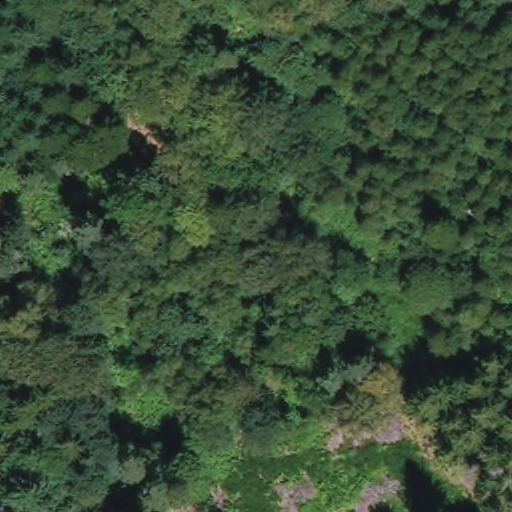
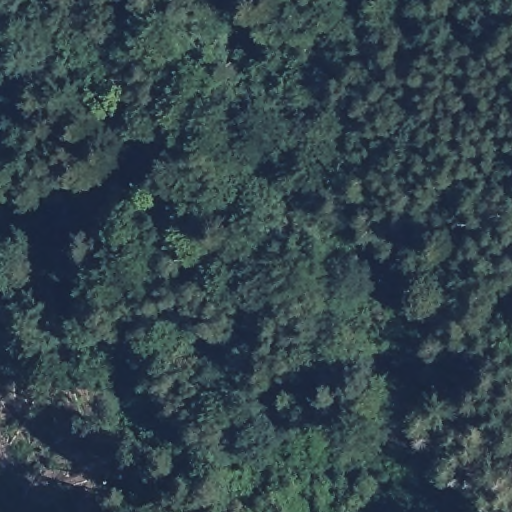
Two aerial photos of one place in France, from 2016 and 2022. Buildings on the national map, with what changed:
[]

